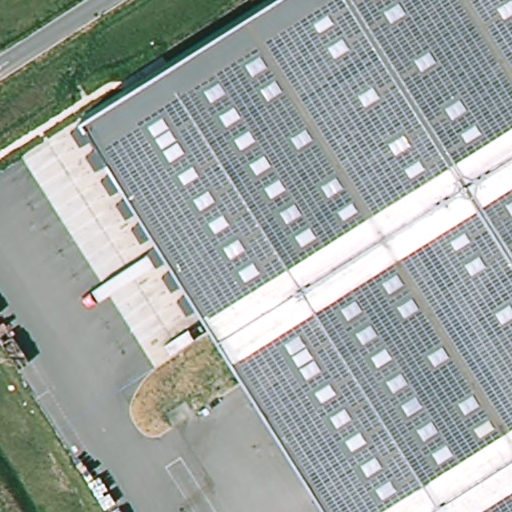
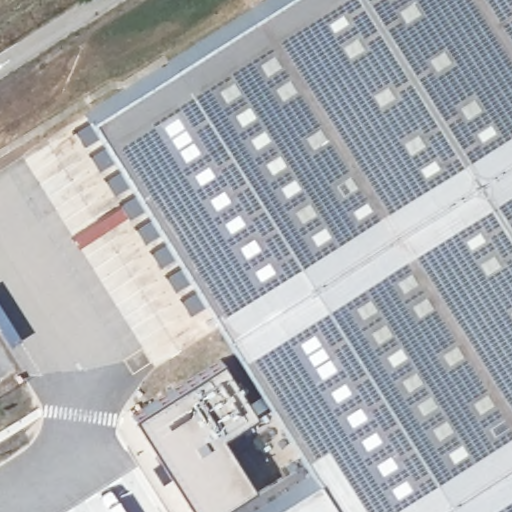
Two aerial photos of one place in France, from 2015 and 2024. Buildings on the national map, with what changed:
unchanged [(266,0),(512,0),(512,512),(336,512),(86,114),(266,0)]
new [(253,415),(219,435),(252,487),(212,512),(191,512),(131,417),(219,361),(253,415)]
new [(332,512),(253,512),(309,476),(332,512)]
new [(267,512),(212,512),(252,487),(267,512)]

